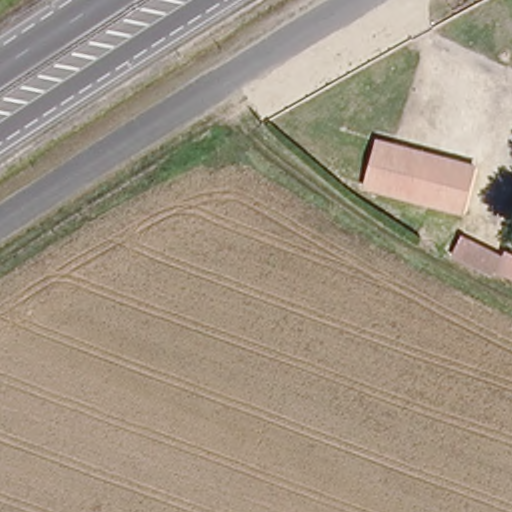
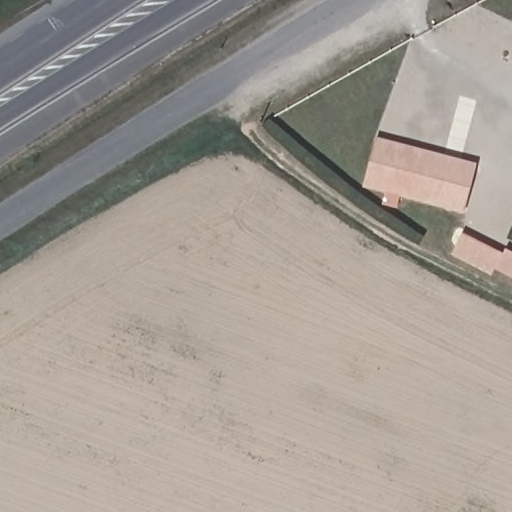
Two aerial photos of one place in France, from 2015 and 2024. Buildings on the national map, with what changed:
unchanged [(407,208),(389,203),(391,193),(363,188),(370,145),(474,164),(467,206),(410,194),(407,208)]
unchanged [(492,273),(452,256),(463,234),(501,253),(492,273)]
unchanged [(512,262),(512,273),(508,270),(512,262)]

